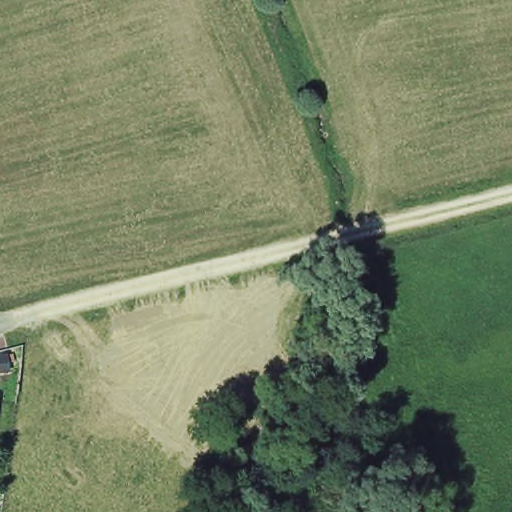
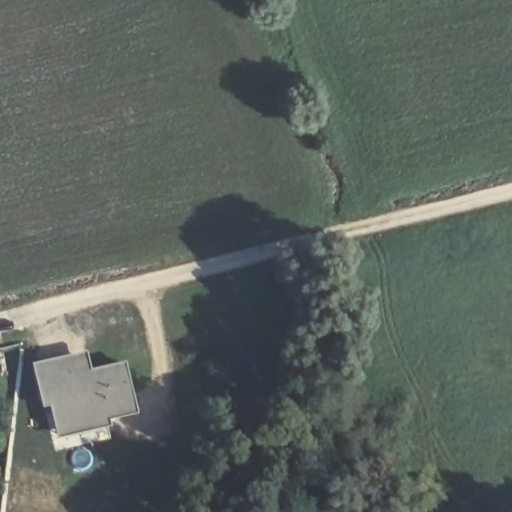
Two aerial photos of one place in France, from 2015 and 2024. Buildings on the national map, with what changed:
new [(87,351),(91,370),(126,362),(137,415),(106,421),(109,429),(56,440),(49,408),(42,410),(32,364),(87,351)]

